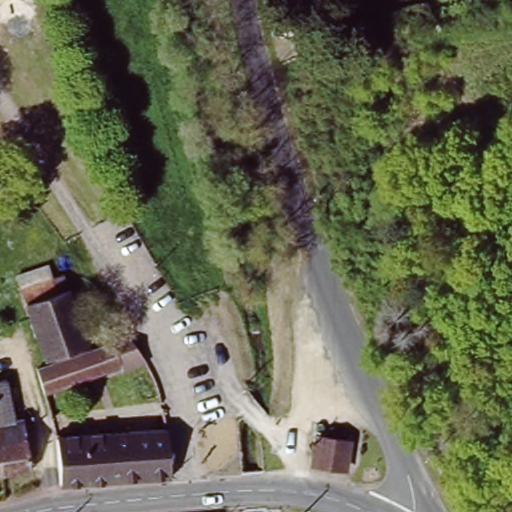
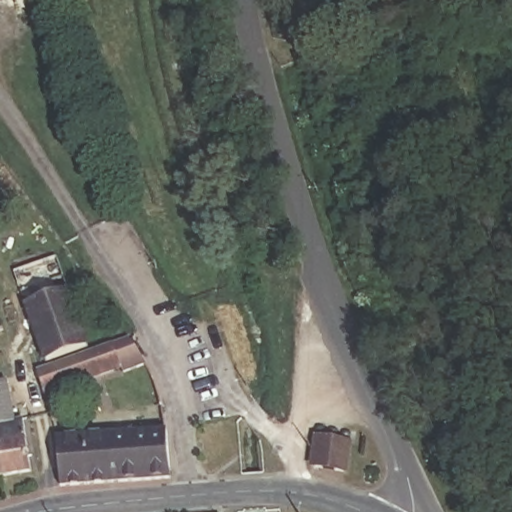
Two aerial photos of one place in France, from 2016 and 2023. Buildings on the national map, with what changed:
unchanged [(339,40),(343,55),(314,64),(310,49),(339,40)]
unchanged [(49,364),(23,291),(36,287),(55,280),(74,273),(80,288),(72,291),(92,350),(49,364)]
unchanged [(149,365),(128,373),(126,368),(47,397),(41,373),(132,339),(149,365)]
unchanged [(16,422),(25,420),(33,471),(3,476),(0,451),(0,383),(10,382),(16,422)]
unchanged [(58,439),(170,431),(173,480),(62,486),(58,439)]
unchanged [(316,431),(348,437),(345,473),(312,466),(316,431)]
unchanged [(0,451),(3,476),(0,477),(0,451)]

